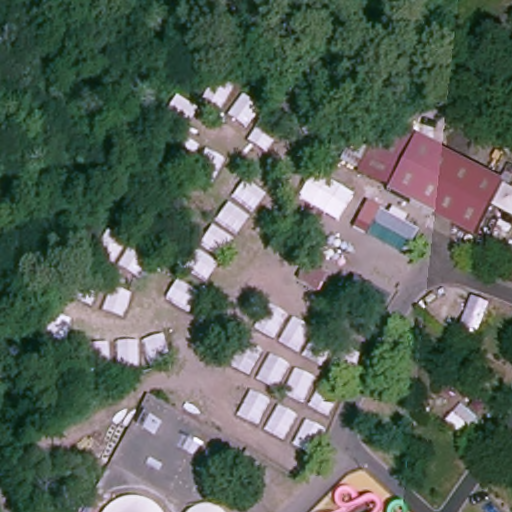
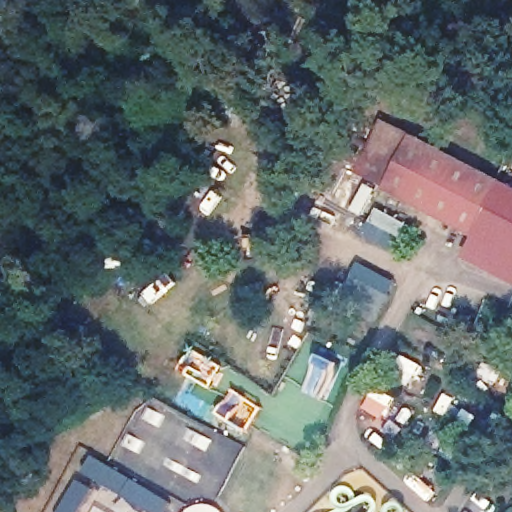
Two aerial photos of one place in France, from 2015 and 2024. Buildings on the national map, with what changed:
unchanged [(467,239),(352,170),(377,115),(497,181),(467,239)]
new [(512,189),(512,279),(462,259),(475,238),(469,235),(497,181),(512,189)]

